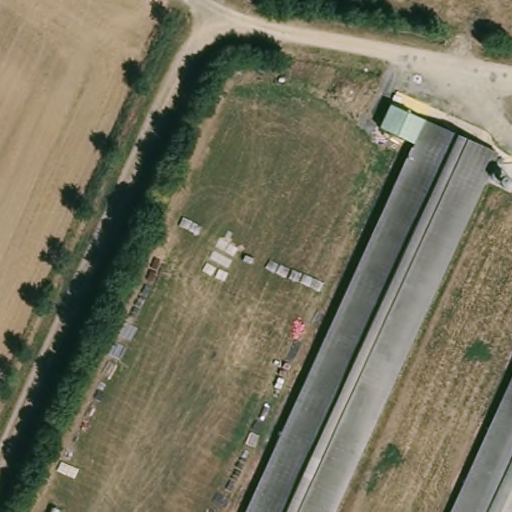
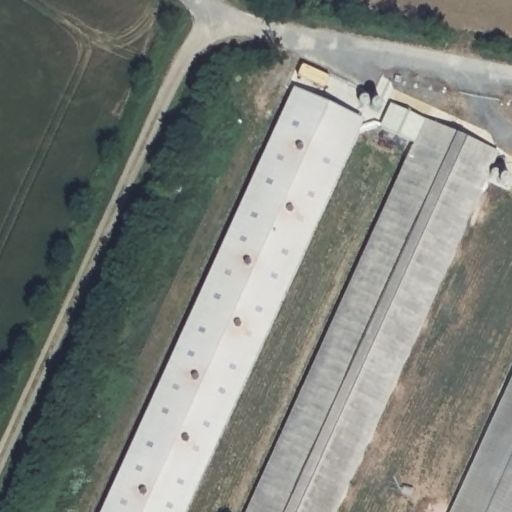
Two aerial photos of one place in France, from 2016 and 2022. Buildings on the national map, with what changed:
new [(363,120),(185,512),(100,512),(292,87),(363,120)]
new [(421,146),(378,127),(389,104),(431,124),(421,146)]
unchanged [(501,150),(338,512),(255,512),(432,120),(501,150)]
unchanged [(512,512),(454,512),(512,384),(512,512)]

